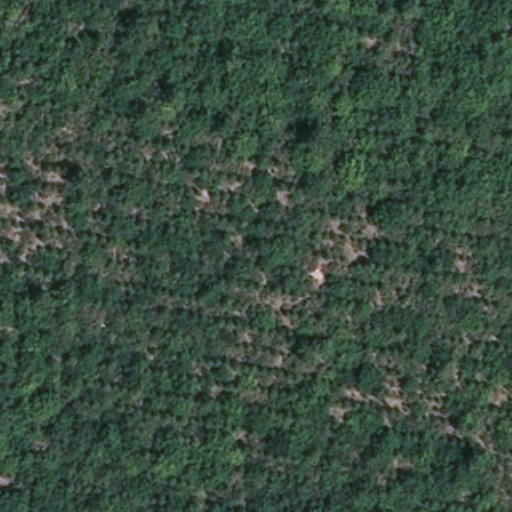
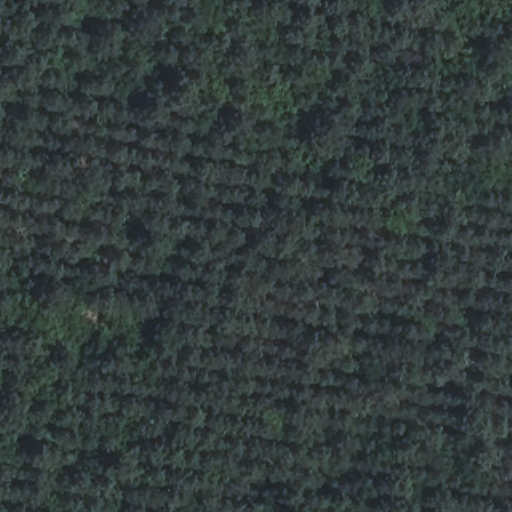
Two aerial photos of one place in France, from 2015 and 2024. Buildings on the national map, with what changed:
[]

